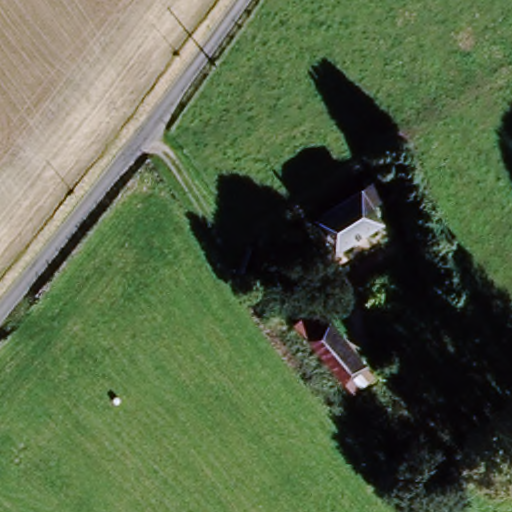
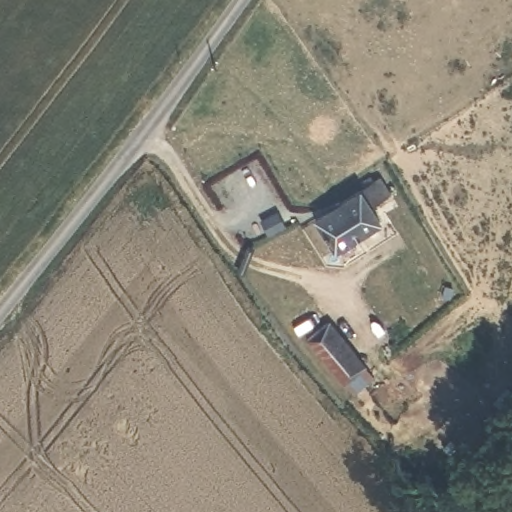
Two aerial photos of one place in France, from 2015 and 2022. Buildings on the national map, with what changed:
unchanged [(310,218),(360,186),(357,181),(365,176),(368,181),(375,177),(385,194),(365,206),(375,221),(330,250),(310,218)]
unchanged [(347,388),(301,334),(292,322),(311,306),(321,317),(367,371),(347,388)]

